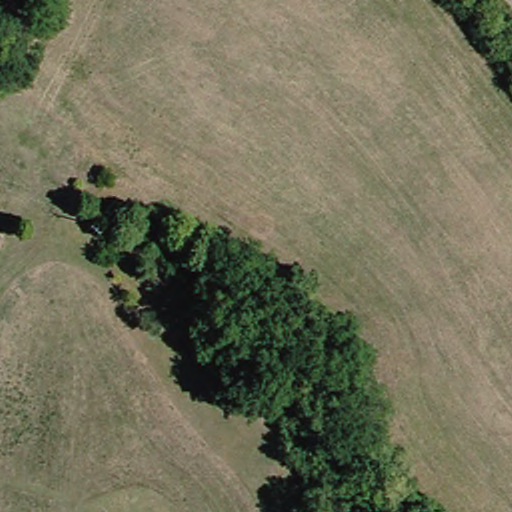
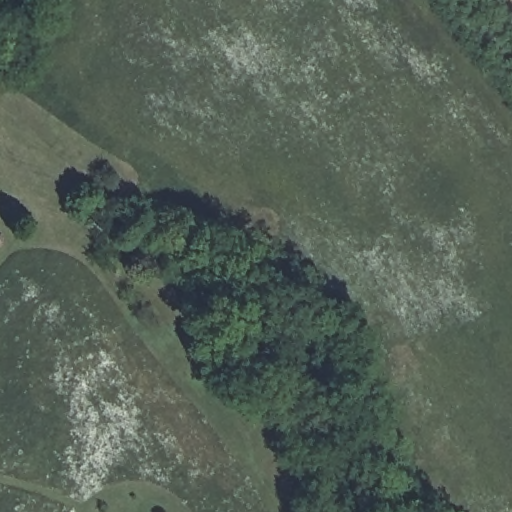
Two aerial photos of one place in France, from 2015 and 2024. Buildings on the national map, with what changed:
[]

